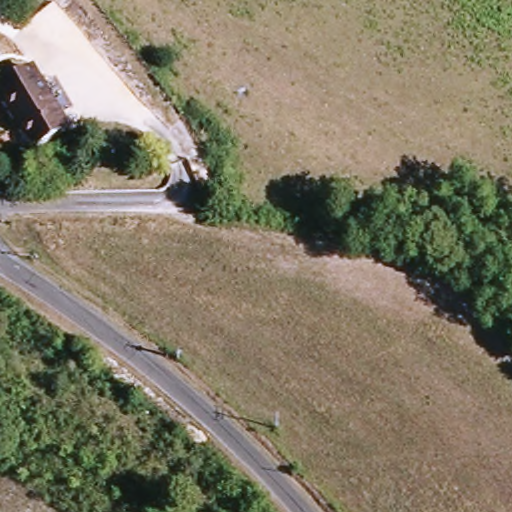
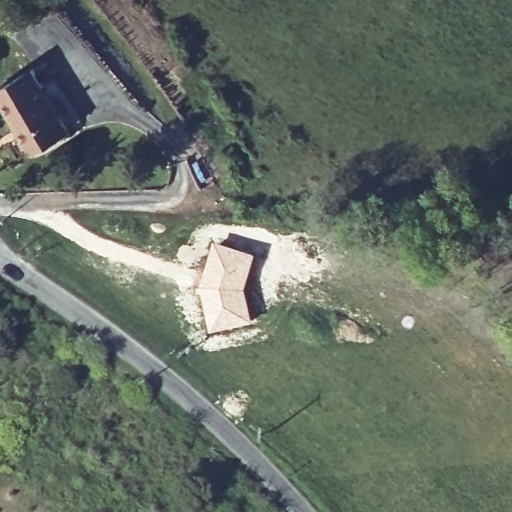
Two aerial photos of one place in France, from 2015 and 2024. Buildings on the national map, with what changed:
unchanged [(0,90),(0,89),(34,70),(70,129),(35,150),(0,90)]
new [(217,242),(259,254),(249,288),(256,322),(213,332),(203,288),(217,242)]

